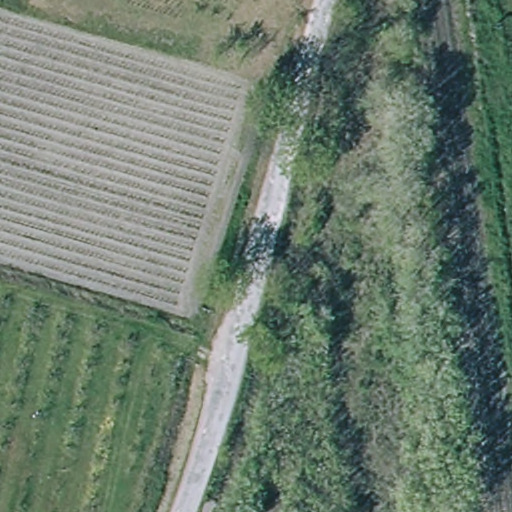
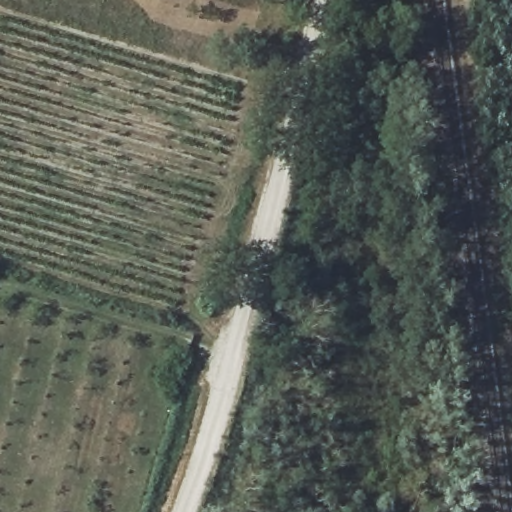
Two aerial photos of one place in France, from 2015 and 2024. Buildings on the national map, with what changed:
[]

